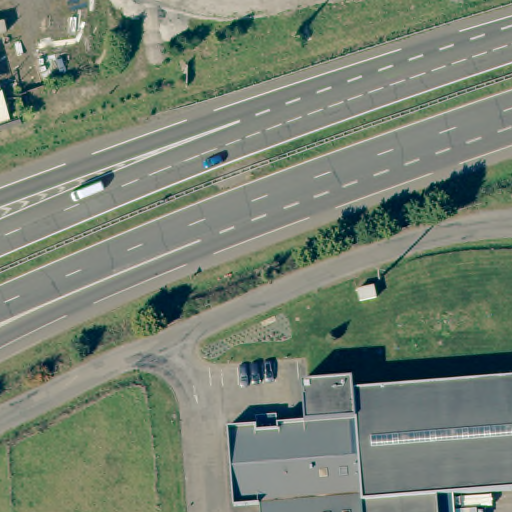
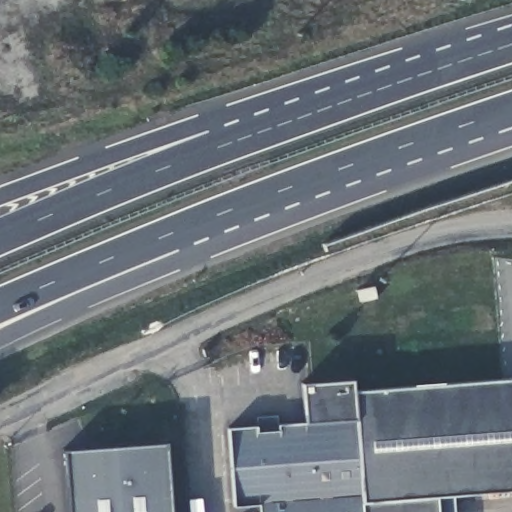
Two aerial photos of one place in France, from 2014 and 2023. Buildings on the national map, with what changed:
unchanged [(360,503),(354,423),(352,396),(512,386),(512,494),(432,499),(360,503)]
unchanged [(360,503),(360,512),(261,512),(261,507),(236,508),(231,431),(256,429),(259,437),(279,435),(280,426),(302,426),(354,423),(360,503)]
new [(166,444),(170,512),(68,512),(63,451),(166,444)]
unchanged [(433,512),(360,512),(360,503),(432,499),(433,512)]

